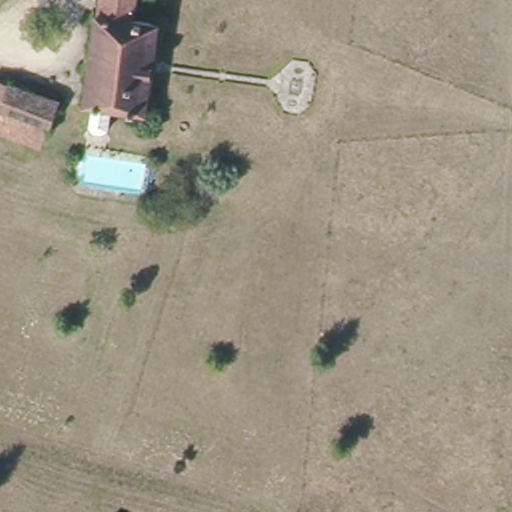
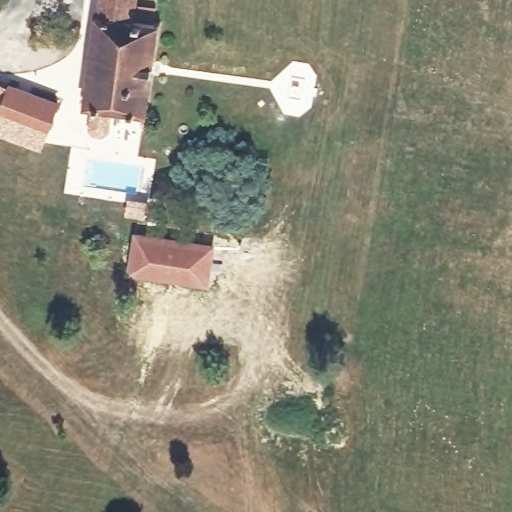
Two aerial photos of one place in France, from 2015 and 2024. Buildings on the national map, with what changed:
unchanged [(160,19),(150,105),(89,97),(102,0),(142,0),(140,16),(160,19)]
unchanged [(57,123),(0,108),(0,76),(65,94),(57,123)]
unchanged [(51,146),(0,133),(0,108),(57,123),(51,146)]
new [(133,228),(160,230),(215,240),(210,285),(125,274),(133,228)]

